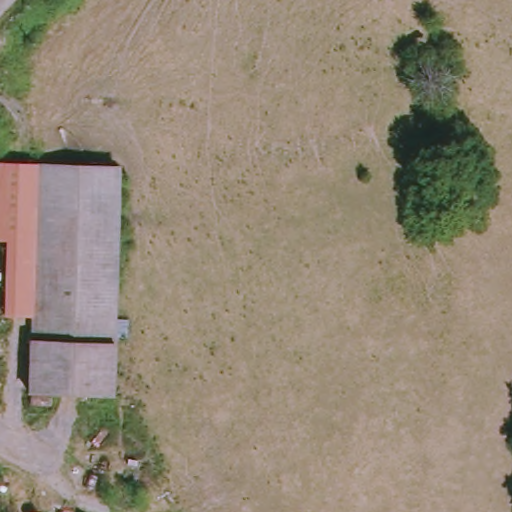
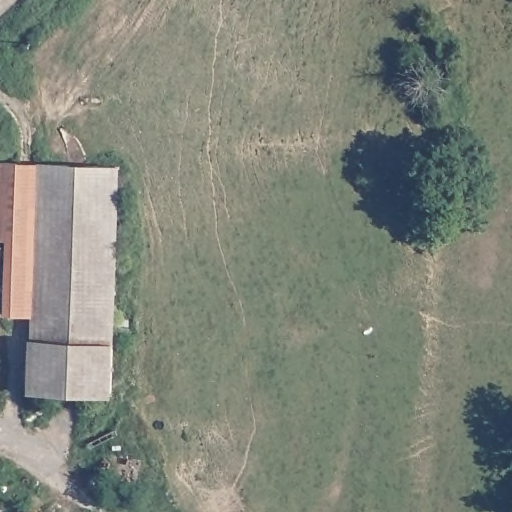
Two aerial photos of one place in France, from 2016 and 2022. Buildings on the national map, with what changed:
unchanged [(5,318),(6,241),(0,240),(0,163),(30,166),(30,319),(5,318)]
unchanged [(113,166),(112,395),(30,395),(30,166),(113,166)]

